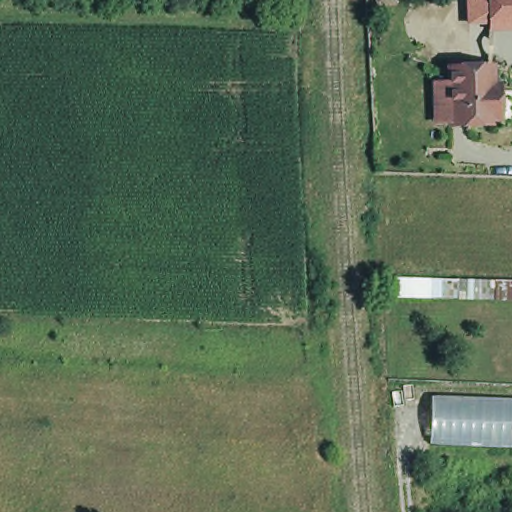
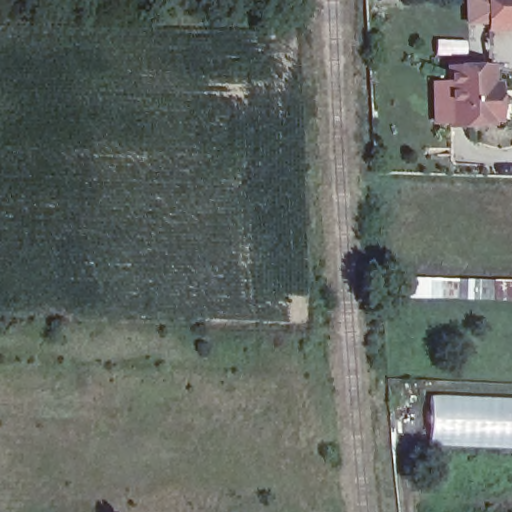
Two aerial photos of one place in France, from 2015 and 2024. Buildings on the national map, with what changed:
unchanged [(488,33),(488,25),(467,26),(466,0),(512,0),(512,32),(488,33)]
unchanged [(434,79),(448,80),(449,64),(492,64),(491,82),(498,82),(497,96),(496,117),(490,118),(490,123),(446,122),(446,119),(432,119),(434,79)]
unchanged [(460,298),(462,280),(512,282),(512,300),(460,298)]
unchanged [(430,443),(432,398),(512,401),(512,450),(430,443)]

